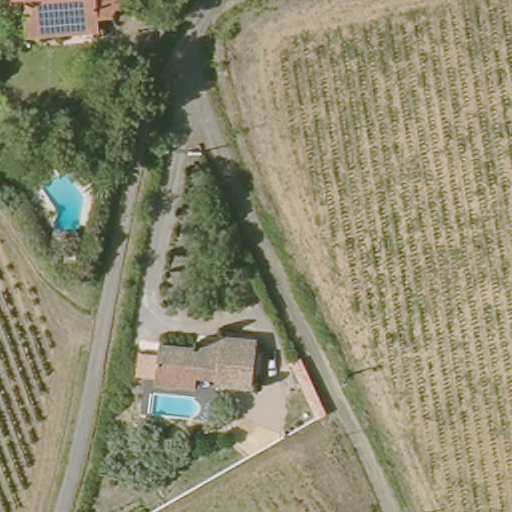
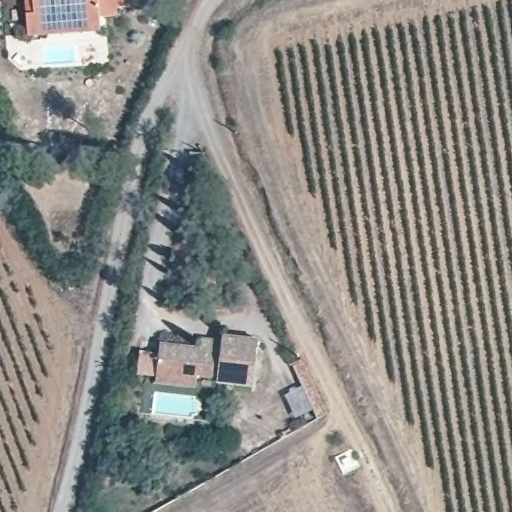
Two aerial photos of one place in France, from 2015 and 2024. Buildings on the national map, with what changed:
unchanged [(29,42),(28,24),(26,0),(116,0),(119,15),(106,17),(107,31),(58,38),(29,42)]
unchanged [(268,337),(260,388),(215,379),(216,397),(153,388),(163,344),(221,349),(220,333),(268,337)]

